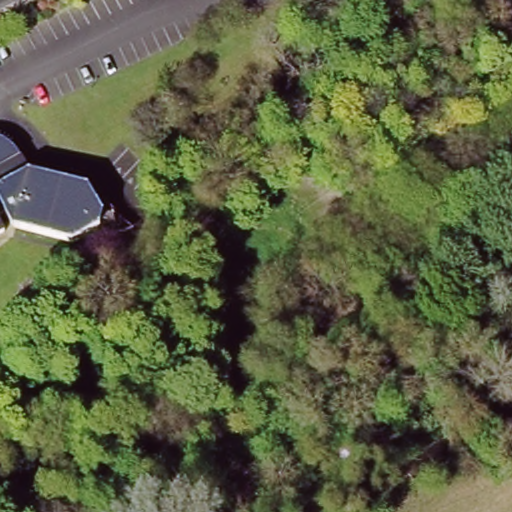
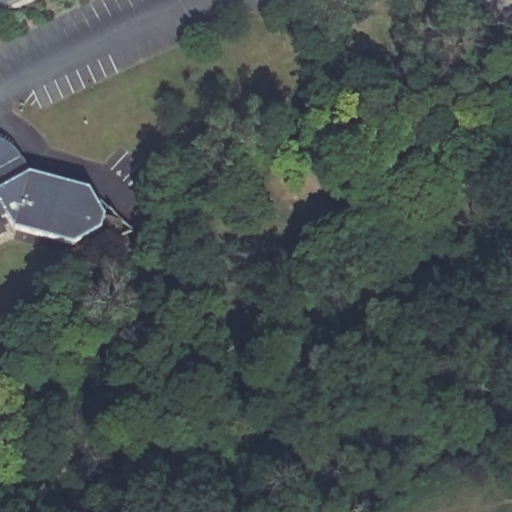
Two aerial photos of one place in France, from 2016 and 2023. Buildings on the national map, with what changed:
unchanged [(0,156),(7,159),(14,164),(21,169),(27,175),(30,179),(59,189),(90,198),(92,201),(104,223),(99,239),(90,244),(73,253),(14,232),(6,219),(0,222),(0,156)]
unchanged [(5,238),(0,240),(0,230),(5,238)]

